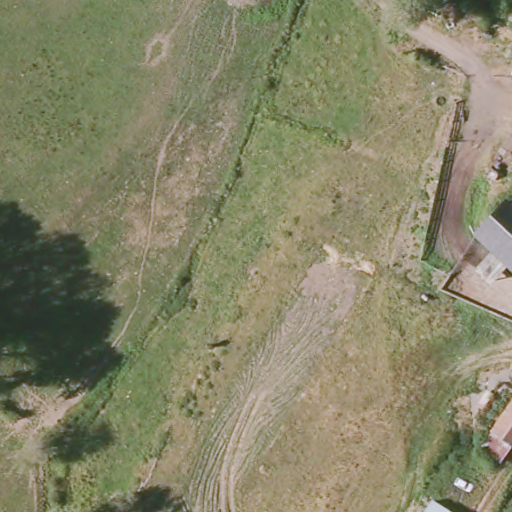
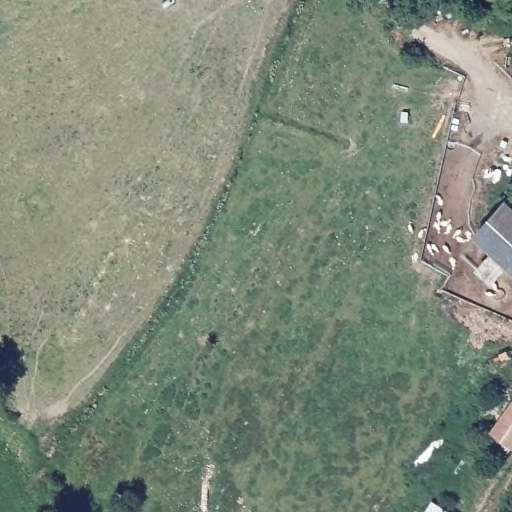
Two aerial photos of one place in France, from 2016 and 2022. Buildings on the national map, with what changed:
unchanged [(497,287),(484,274),(502,255),(484,237),(512,209),(512,271),(497,287)]
unchanged [(510,455),(491,441),(512,411),(512,452),(510,455)]
unchanged [(448,512),(434,512),(438,506),(448,512)]

